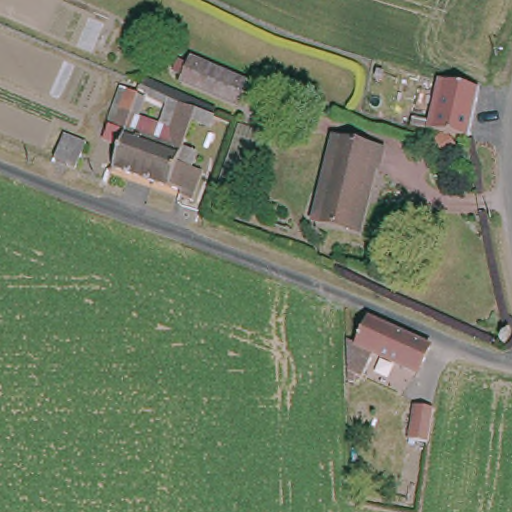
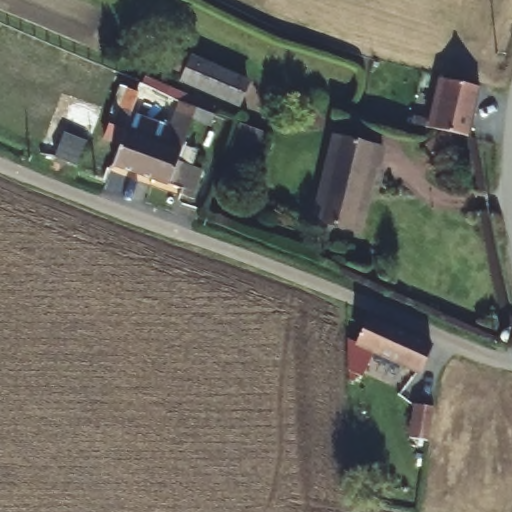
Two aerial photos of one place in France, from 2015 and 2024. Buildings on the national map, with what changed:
unchanged [(251,82),(243,105),(187,82),(189,76),(176,71),(181,59),(194,64),(196,58),(251,82)]
unchanged [(417,125),(419,117),(438,121),(444,91),(425,86),(428,75),(486,87),(474,137),(417,125)]
unchanged [(186,196),(185,195),(186,190),(116,167),(124,145),(108,139),(113,127),(110,126),(114,112),(118,104),(124,86),(141,92),(145,82),(148,84),(151,76),(221,107),(219,114),(220,114),(216,124),(213,122),(198,117),(188,145),(203,151),(197,166),(208,171),(197,199),(186,196)]
unchanged [(462,148),(443,162),(431,147),(451,132),(462,148)]
unchanged [(63,134),(84,143),(75,167),(53,158),(63,134)]
unchanged [(374,167),(359,232),(317,222),(337,137),(383,149),(379,168),(374,167)]
unchanged [(345,339),(357,342),(369,317),(431,345),(419,372),(373,352),(361,377),(357,376),(358,382),(346,382),(346,371),(345,339)]
unchanged [(505,343),(501,342),(498,338),(499,331),(504,326),(511,326),(505,343)]
unchanged [(409,437),(414,404),(434,407),(429,441),(409,437)]

